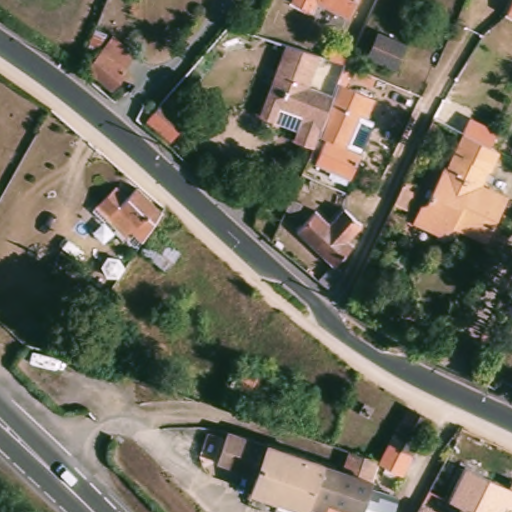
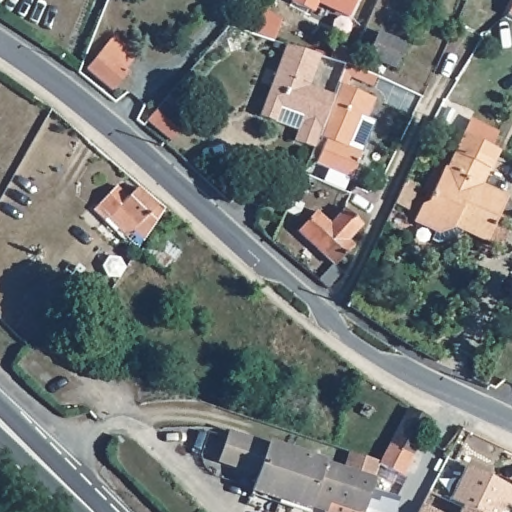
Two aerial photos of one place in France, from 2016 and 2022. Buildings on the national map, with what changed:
unchanged [(299,0),(362,0),(351,22),(321,9),(316,17),(295,8),(299,0)]
unchanged [(512,17),(506,15),(512,2),(512,17)]
unchanged [(378,31),(407,45),(396,70),(366,56),(378,31)]
unchanged [(320,51),(308,83),(333,93),(319,131),(314,144),(293,135),(303,110),(281,102),(276,116),(259,110),(285,41),(320,51)]
unchanged [(106,55),(131,75),(114,95),(89,74),(106,55)]
unchanged [(339,79),(376,95),(368,114),(361,110),(347,142),(361,149),(350,174),(316,159),(326,135),(319,131),(333,93),(339,79)]
unchanged [(162,103),(185,123),(170,142),(146,120),(162,103)]
unchanged [(503,156),(494,175),(493,175),(485,191),(511,202),(490,247),(458,234),(442,240),(417,227),(424,210),(433,207),(449,172),(452,173),(468,138),(503,156)]
unchanged [(87,200),(105,181),(117,192),(127,182),(145,201),(149,210),(137,229),(124,224),(118,229),(98,210),(87,200)]
unchanged [(422,192),(412,214),(399,208),(409,186),(422,192)]
unchanged [(320,217),(334,230),(347,214),(367,231),(353,246),(357,250),(338,272),(301,239),(320,217)]
unchanged [(144,227),(169,247),(155,267),(129,247),(144,227)]
unchanged [(229,368),(250,375),(251,373),(319,396),(311,425),(221,396),(229,368)]
unchanged [(412,413),(445,431),(433,455),(423,449),(417,462),(393,450),(412,413)]
unchanged [(313,512),(295,512),(254,498),(260,481),(223,468),(233,439),(270,452),(271,450),(328,469),(328,472),(376,488),(371,503),(369,512),(344,512),(316,502),(313,512)]
unchanged [(393,450),(417,462),(399,497),(376,486),(383,465),(393,450)]
unchanged [(512,486),(512,508),(510,507),(508,512),(472,512),(450,502),(467,465),(512,486)]
unchanged [(439,512),(416,512),(421,502),(439,512)]
unchanged [(472,512),(457,512),(460,506),(472,512)]

